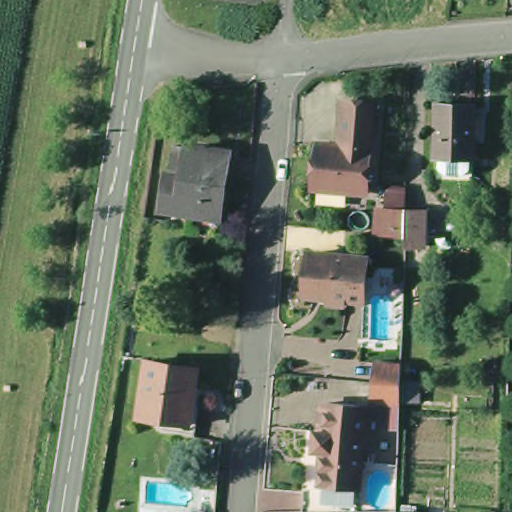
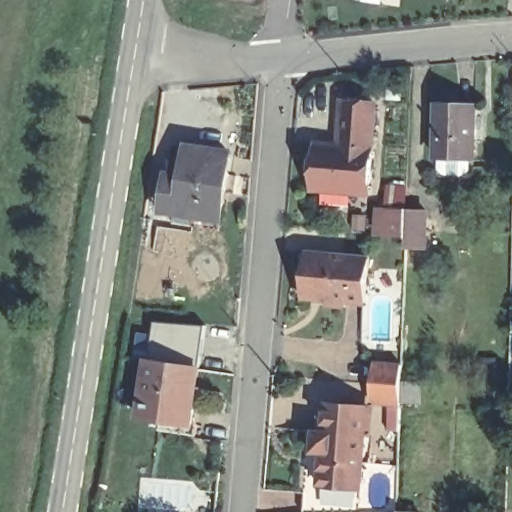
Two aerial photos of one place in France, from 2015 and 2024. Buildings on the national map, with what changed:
unchanged [(373,110),(367,199),(312,195),(315,150),(340,152),(340,142),(343,107),(373,110)]
unchanged [(437,111),(473,112),(472,165),(435,164),(437,111)]
unchanged [(193,228),(195,216),(177,213),(162,211),(163,198),(167,176),(168,176),(172,149),(187,151),(187,150),(231,156),(221,219),(219,232),(193,228)]
unchanged [(408,247),(408,237),(387,235),(387,234),(388,209),(410,211),(430,212),(429,231),(428,247),(408,247)]
unchanged [(325,305),(326,299),(308,297),(303,296),(308,253),(313,253),(367,258),(362,303),(345,301),(344,307),(325,305)]
unchanged [(393,404),(375,403),(377,382),(379,362),(404,364),(403,380),(422,381),(422,403),(403,402),(403,405),(402,431),(392,431),(393,404)]
unchanged [(190,441),(155,436),(157,426),(134,422),(143,364),(195,372),(191,395),(197,396),(190,441)]
unchanged [(362,489),(322,484),(325,449),(316,449),(318,428),(328,429),(331,403),(370,408),(362,489)]

